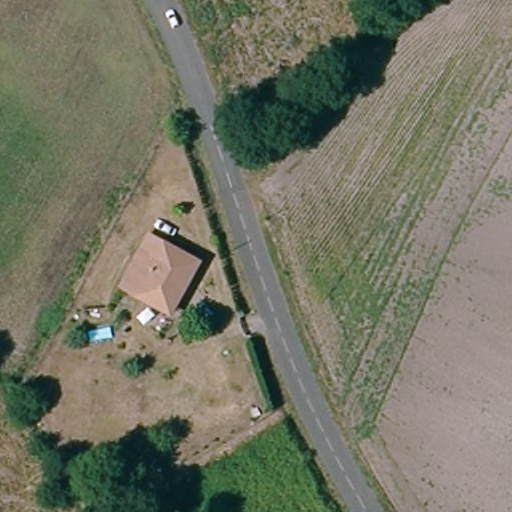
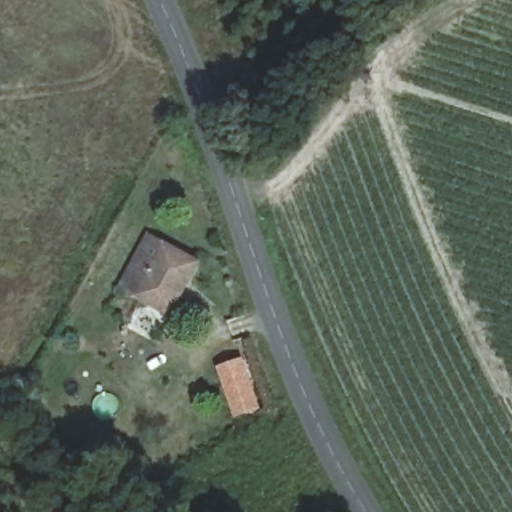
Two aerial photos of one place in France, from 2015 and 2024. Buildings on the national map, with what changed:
unchanged [(116,285),(143,237),(199,267),(173,315),(116,285)]
new [(261,410),(234,418),(216,367),(243,358),(261,410)]

